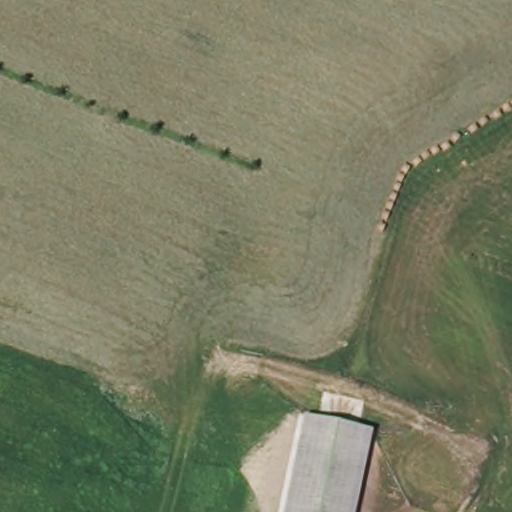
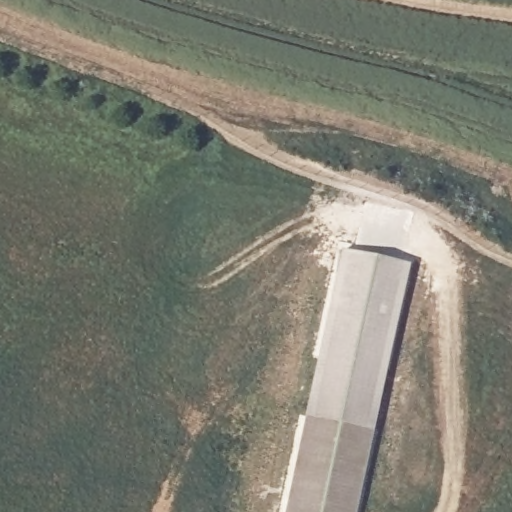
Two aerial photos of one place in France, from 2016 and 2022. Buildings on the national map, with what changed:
new [(301,416),(338,253),(406,267),(372,431),(301,416)]
unchanged [(356,512),(282,512),(301,416),(372,431),(356,512)]

